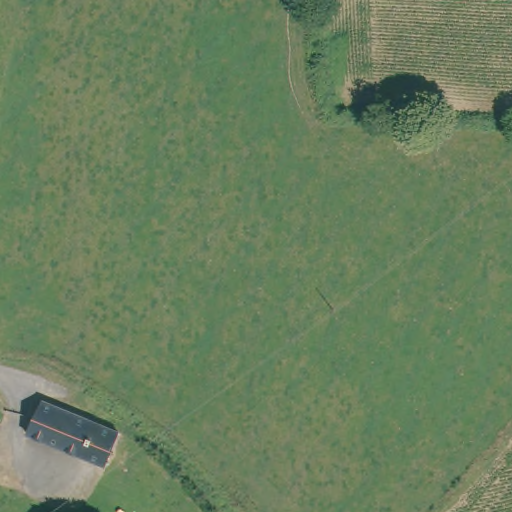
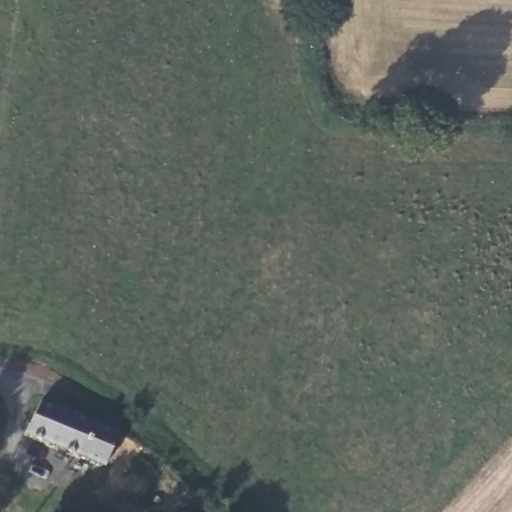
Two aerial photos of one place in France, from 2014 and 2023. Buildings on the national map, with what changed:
unchanged [(81,412),(119,422),(111,455),(36,433),(29,432),(36,402),(81,412)]

